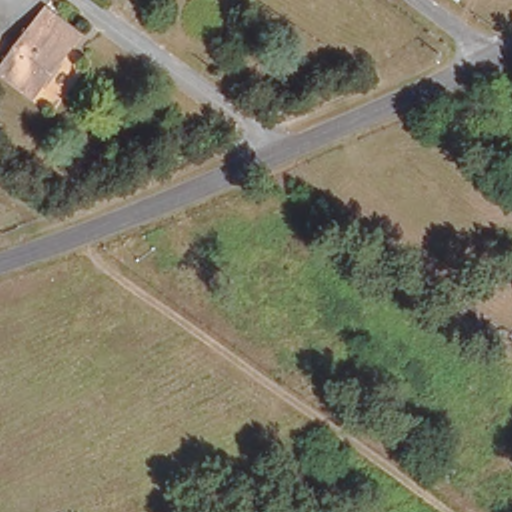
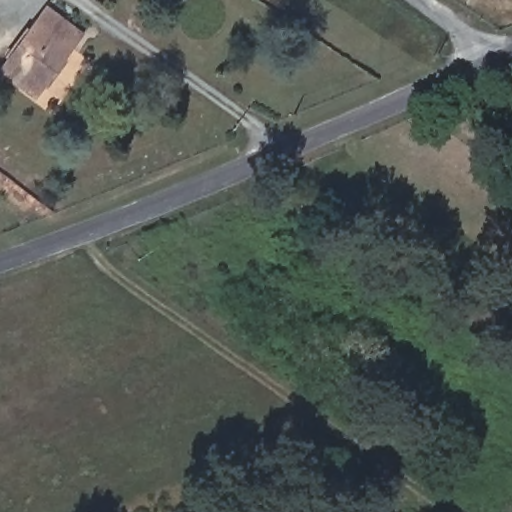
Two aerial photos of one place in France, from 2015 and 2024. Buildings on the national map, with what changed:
unchanged [(0,74),(0,70),(44,6),(67,22),(84,34),(72,49),(37,98),(0,74)]

